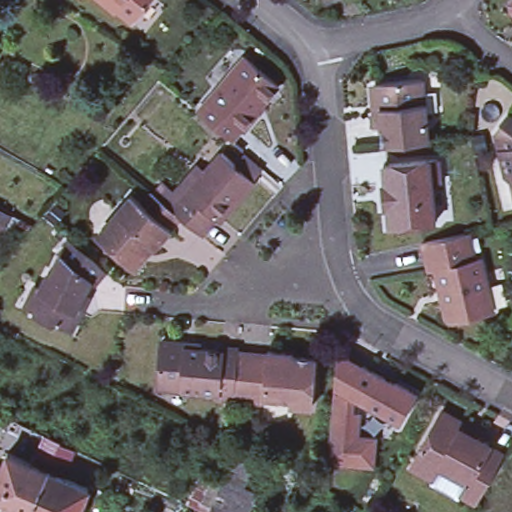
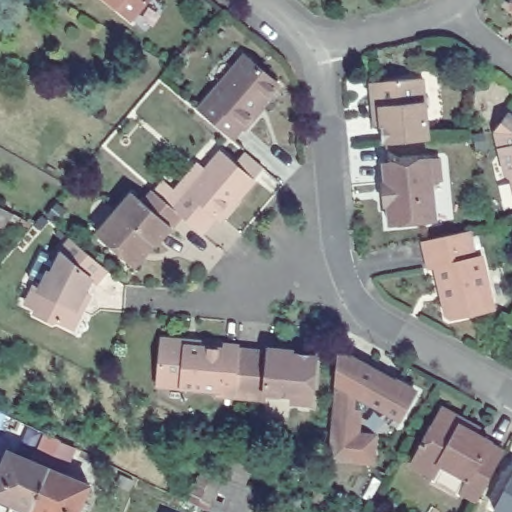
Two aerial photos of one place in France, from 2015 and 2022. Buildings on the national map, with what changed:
unchanged [(133,21),(106,0),(150,0),(133,21)]
unchanged [(512,11),(507,6),(506,0),(512,0),(512,11)]
unchanged [(197,112),(207,102),(244,58),(278,87),(255,115),(257,116),(243,132),(242,130),(232,142),(197,112)]
unchanged [(383,143),(380,106),(373,102),(372,87),(377,79),(422,75),(428,139),(383,143)]
unchanged [(497,177),(487,135),(498,118),(512,127),(512,206),(508,206),(503,182),(497,177)]
unchanged [(453,137),(452,120),(467,119),(470,135),(453,137)]
unchanged [(102,242),(97,237),(115,216),(121,220),(127,225),(144,205),(153,193),(161,200),(168,192),(178,201),(184,194),(177,189),(197,167),(203,173),(220,153),(233,164),(245,152),(264,169),(253,181),(218,223),(214,219),(201,235),(182,219),(172,231),(156,250),(137,271),(134,268),(102,242)]
unchanged [(384,204),(379,205),(377,181),(382,181),(380,162),(435,156),(437,180),(428,181),(432,218),(387,224),(384,204)]
unchanged [(470,228),(475,255),(434,264),(429,266),(422,238),(470,228)]
unchanged [(35,286),(40,288),(47,275),(52,274),(72,242),(107,272),(95,288),(91,287),(77,314),(82,316),(73,333),(55,324),(53,326),(33,316),(36,310),(25,305),(35,286)]
unchanged [(475,255),(483,254),(495,307),(452,316),(445,313),(434,264),(475,255)]
unchanged [(285,351),(285,363),(291,363),(292,356),(317,358),(312,406),(290,404),(291,398),(265,396),(265,402),(235,400),(235,394),(216,393),(217,388),(156,381),(162,335),(187,338),(198,340),(197,346),(222,349),(222,343),(240,344),(239,351),(267,354),(268,350),(285,351)]
unchanged [(328,463),(329,459),(337,357),(348,358),(395,384),(396,382),(417,394),(402,423),(370,405),(369,413),(362,413),(360,438),(378,439),(377,457),(377,467),(328,463)]
unchanged [(412,455),(442,400),(463,412),(461,417),(492,434),(490,437),(505,444),(477,492),(462,483),(434,468),(412,455)]
unchanged [(247,484),(258,487),(248,512),(211,512),(185,496),(197,471),(214,477),(230,443),(260,452),(247,484)]
unchanged [(24,512),(0,502),(0,473),(8,453),(49,470),(32,512),(24,512)]
unchanged [(327,483),(315,482),(316,464),(328,465),(327,483)]
unchanged [(81,512),(32,512),(49,470),(92,488),(81,512)]
new [(512,512),(495,512),(512,479),(512,512)]

